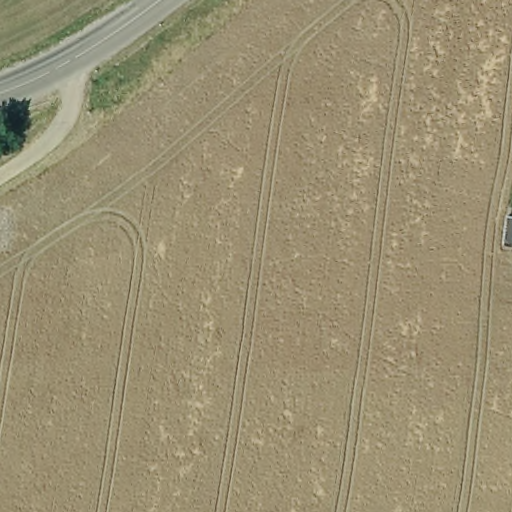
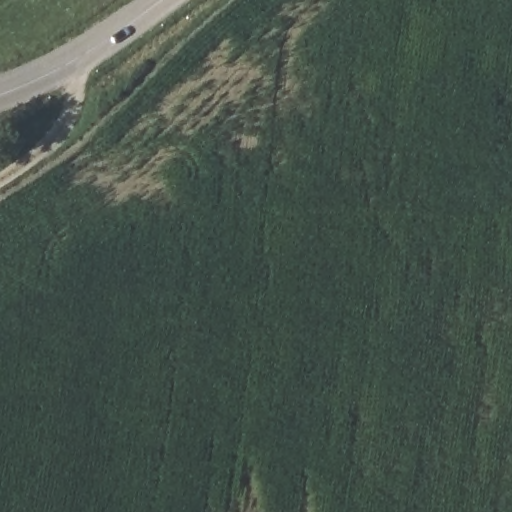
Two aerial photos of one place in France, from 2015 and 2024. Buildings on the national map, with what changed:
unchanged [(504,250),(507,215),(512,215),(512,251),(504,250)]

